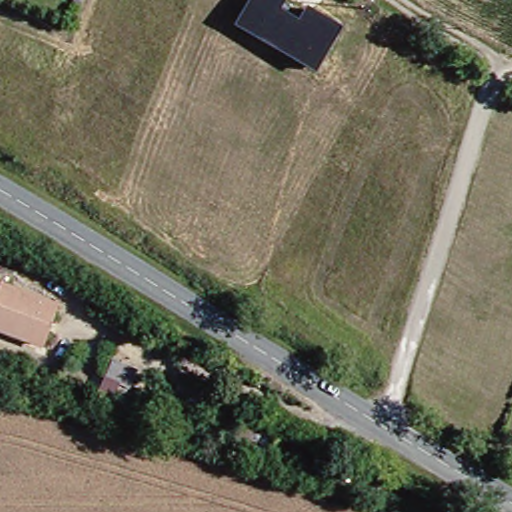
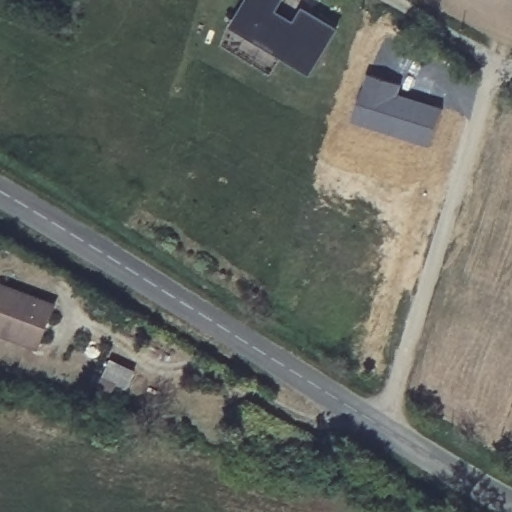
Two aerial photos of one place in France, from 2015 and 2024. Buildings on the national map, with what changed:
unchanged [(248,0),(284,0),(278,10),(296,20),(304,7),(340,29),(314,74),(232,26),(248,0)]
new [(434,145),(355,120),(369,74),(405,84),(402,94),(447,106),(434,145)]
unchanged [(0,332),(0,286),(50,307),(31,345),(0,332)]
unchanged [(98,392),(104,375),(128,385),(121,401),(98,392)]

